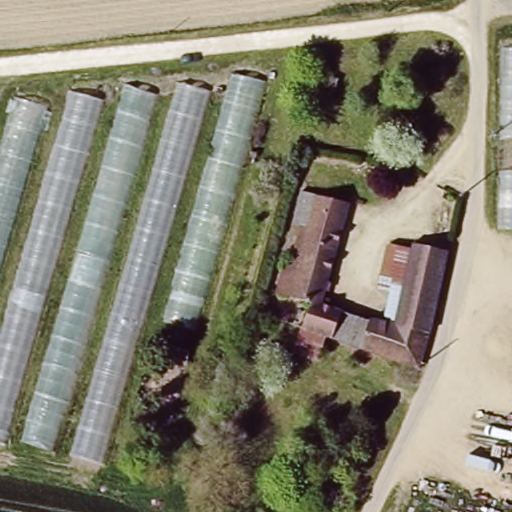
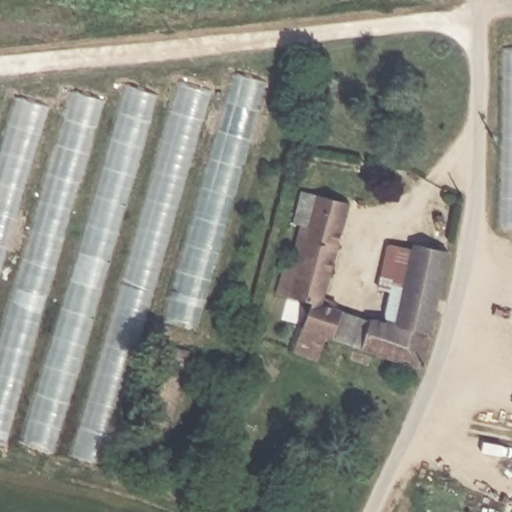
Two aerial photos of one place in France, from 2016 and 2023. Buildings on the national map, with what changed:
unchanged [(497,225),(499,46),(512,46),(512,226),(497,225)]
unchanged [(72,91),(120,103),(127,86),(172,100),(177,83),(225,95),(233,74),(265,81),(195,326),(140,311),(95,462),(0,443),(0,158),(18,97),(65,110),(72,91)]
unchanged [(299,319),(279,311),(267,306),(282,256),(288,258),(293,243),(299,245),(315,189),(350,200),(320,299),(388,320),(392,309),(401,278),(394,275),(380,270),(392,238),(411,245),(413,235),(447,248),(417,366),(412,365),(355,355),(357,347),(342,345),(344,337),(332,332),(325,347),(293,334),(299,319)]

